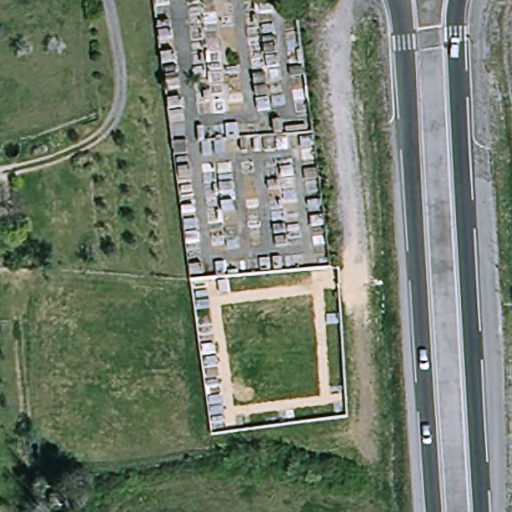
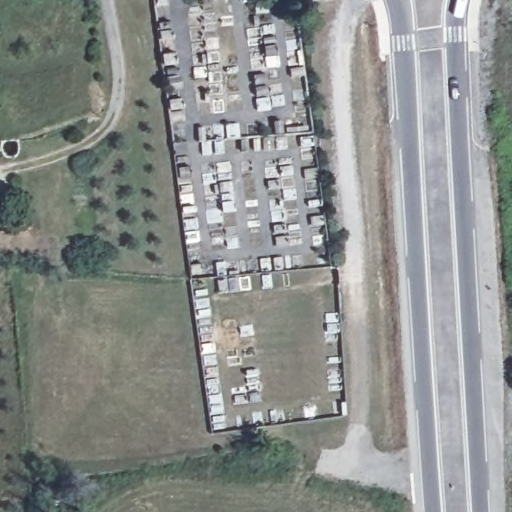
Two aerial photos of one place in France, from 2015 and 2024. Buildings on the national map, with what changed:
unchanged [(313,0),(322,0),(313,1),(313,0)]
unchanged [(40,512),(39,490),(74,488),(75,512),(40,512)]

